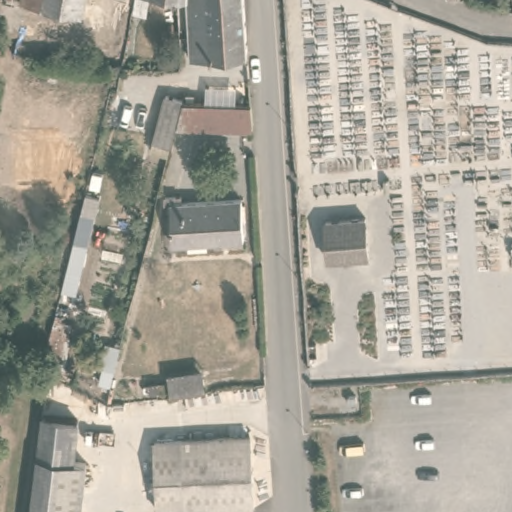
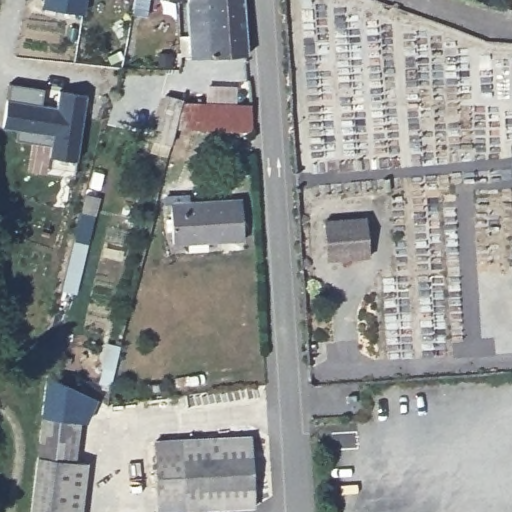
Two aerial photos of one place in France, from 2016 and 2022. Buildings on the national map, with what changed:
unchanged [(0,0),(21,0),(20,4),(0,0)]
unchanged [(20,4),(21,0),(82,0),(80,15),(20,4)]
unchanged [(177,0),(177,1),(174,1),(169,0),(177,0)]
unchanged [(184,12),(184,2),(177,1),(177,0),(241,0),(241,8),(184,12)]
unchanged [(509,0),(512,0),(512,17),(511,17),(509,0)]
unchanged [(187,60),(184,12),(241,8),(245,56),(187,60)]
new [(11,84),(46,89),(44,105),(59,107),(61,92),(89,96),(79,161),(50,157),(52,146),(17,141),(19,131),(5,128),(11,84)]
unchanged [(179,96),(167,140),(150,136),(162,91),(179,96)]
unchanged [(174,123),(180,98),(248,100),(249,125),(174,123)]
unchanged [(161,197),(171,197),(171,205),(238,200),(240,241),(169,244),(167,205),(161,205),(161,197)]
unchanged [(60,292),(65,274),(56,271),(69,218),(93,225),(77,297),(60,292)]
unchanged [(361,219),(364,258),(325,261),(321,222),(361,219)]
unchanged [(169,394),(199,395),(199,410),(169,408),(169,394)]
unchanged [(35,495),(40,454),(44,422),(77,427),(73,456),(86,457),(79,512),(32,512),(35,495)]
unchanged [(246,437),(250,508),(154,512),(150,442),(246,437)]

